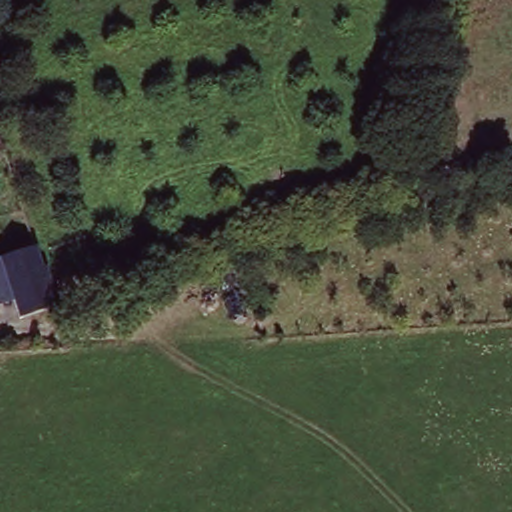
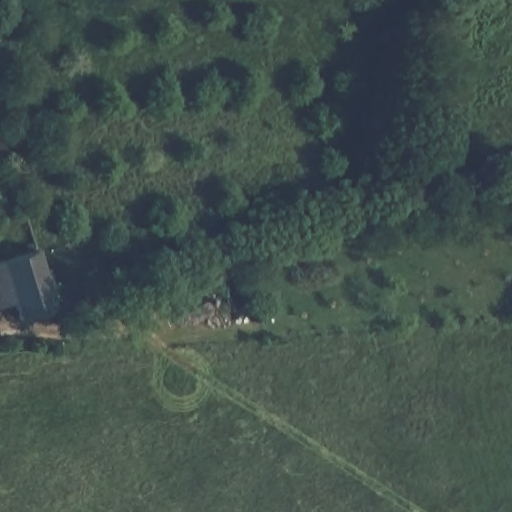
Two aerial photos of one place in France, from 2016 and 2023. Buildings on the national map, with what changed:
unchanged [(9,158),(0,161),(0,143),(3,142),(9,158)]
unchanged [(24,318),(18,305),(1,258),(30,245),(37,264),(42,262),(52,287),(46,289),(53,306),(24,318)]
unchanged [(0,312),(0,258),(1,258),(18,305),(0,312)]

